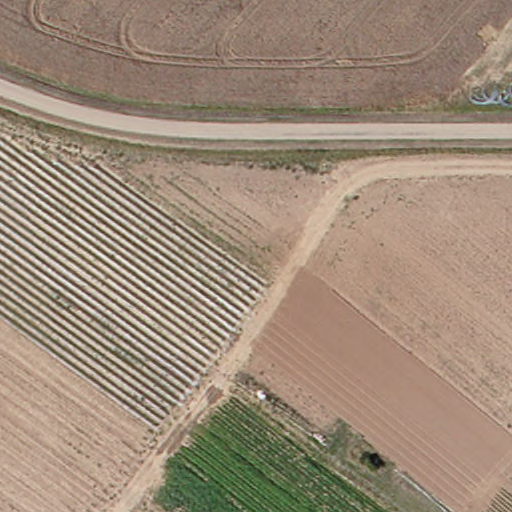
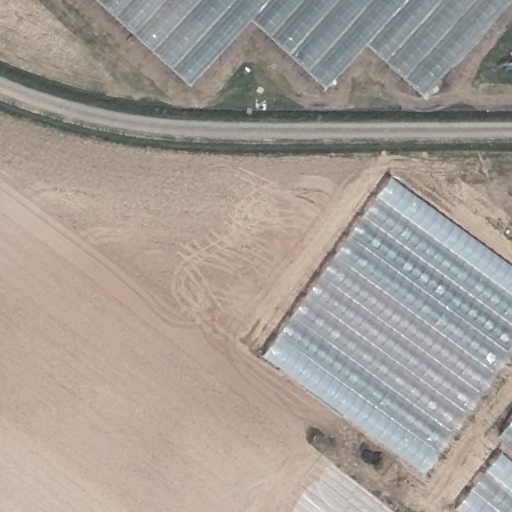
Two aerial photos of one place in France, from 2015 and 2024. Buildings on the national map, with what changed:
new [(420,97),(365,47),(323,90),(248,22),(186,88),(91,0),(508,0),(420,97)]
new [(420,478),(259,357),(387,179),(512,271),(512,346),(420,478)]
new [(512,418),(512,444),(500,434),(512,418)]
new [(496,456),(512,469),(512,512),(453,512),(451,511),(496,456)]

